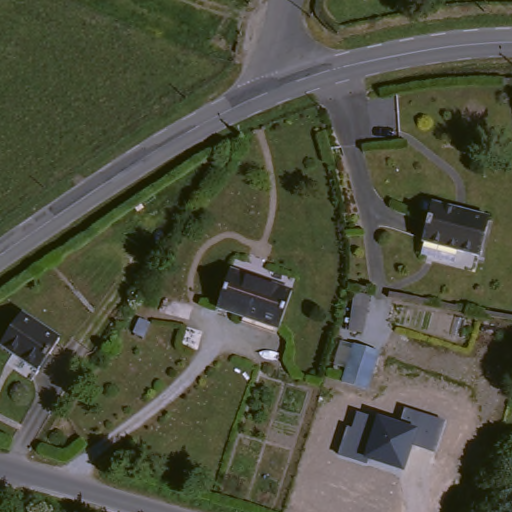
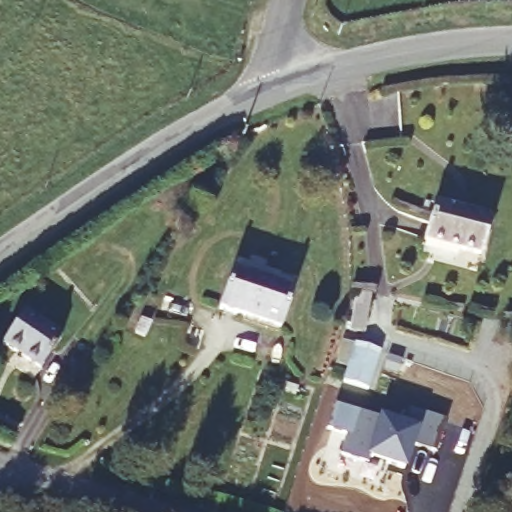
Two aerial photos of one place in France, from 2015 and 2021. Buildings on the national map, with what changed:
unchanged [(417,260),(421,248),(433,207),(487,221),(475,265),(456,258),(453,271),(417,260)]
unchanged [(291,291),(277,331),(220,310),(233,271),(291,291)]
unchanged [(379,298),(369,333),(357,330),(366,295),(379,298)]
unchanged [(0,351),(0,343),(21,314),(62,345),(29,389),(7,372),(14,362),(0,351)]
unchanged [(380,363),(364,400),(341,390),(357,352),(380,363)]
unchanged [(347,425),(352,427),(357,411),(378,418),(379,415),(402,421),(406,408),(446,420),(436,452),(413,446),(405,472),(370,460),(368,465),(339,455),(347,425)]

